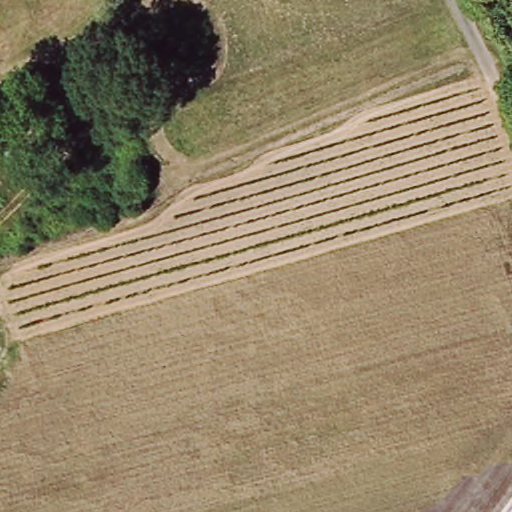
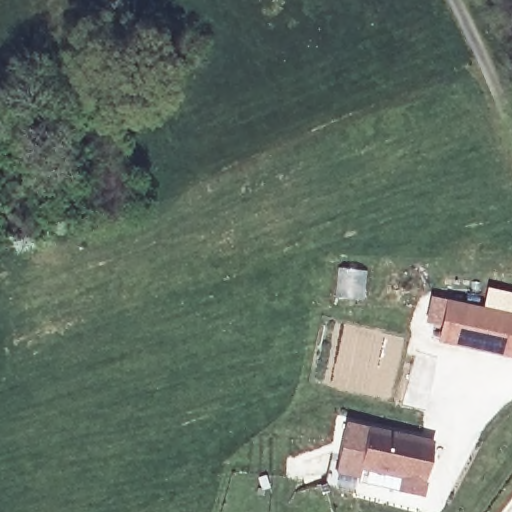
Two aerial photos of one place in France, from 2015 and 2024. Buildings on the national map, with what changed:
new [(512,357),(437,344),(447,300),(512,313),(512,357)]
new [(434,441),(424,496),(397,490),(399,480),(360,468),(357,478),(336,473),(347,422),(434,441)]

